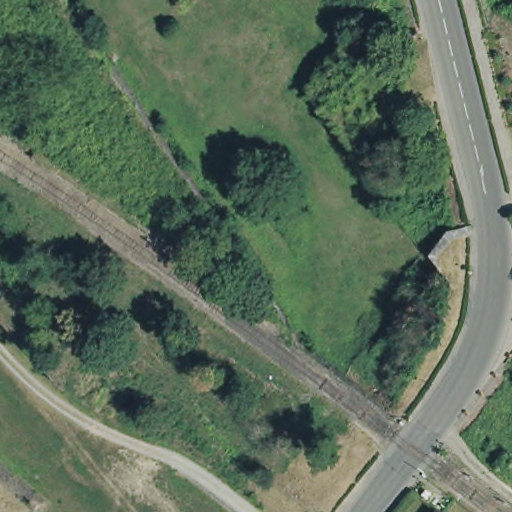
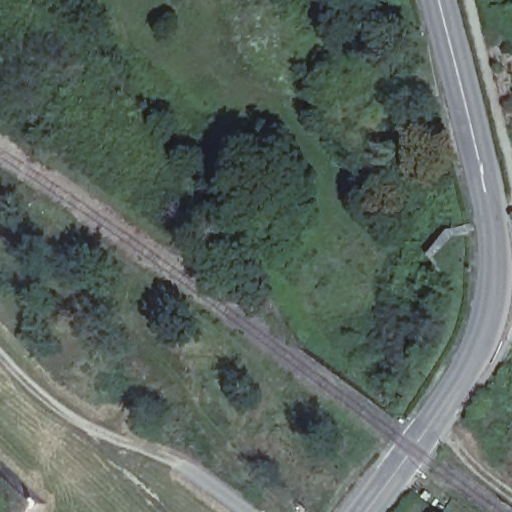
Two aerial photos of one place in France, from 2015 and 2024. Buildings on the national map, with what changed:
unchanged [(436,512),(440,507),(448,512),(436,512)]

